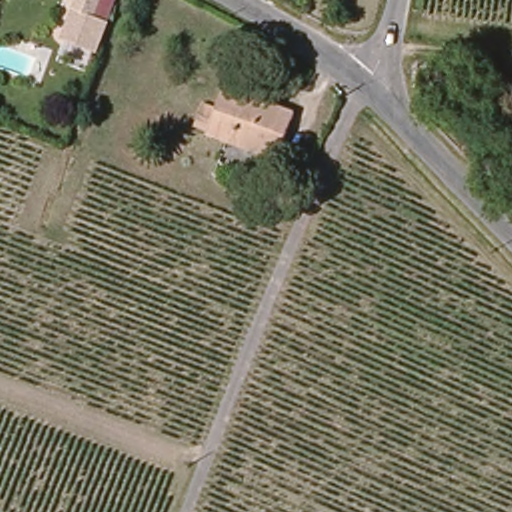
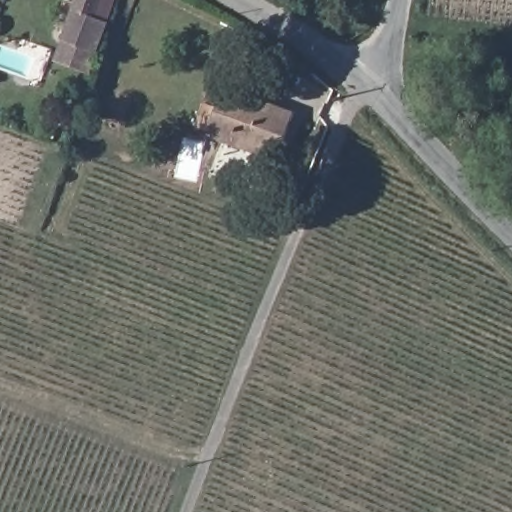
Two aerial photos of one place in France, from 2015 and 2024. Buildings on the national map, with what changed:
unchanged [(72,13),(77,0),(114,0),(105,25),(72,13)]
unchanged [(94,53),(62,40),(72,13),(105,25),(94,53)]
unchanged [(294,110),(277,159),(209,135),(210,131),(196,125),(205,103),(218,107),(225,87),(294,110)]

